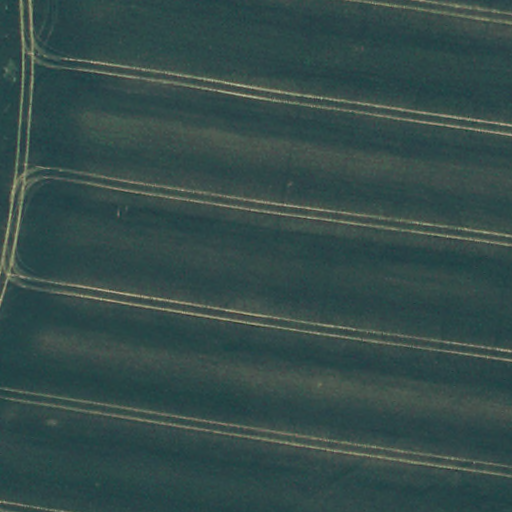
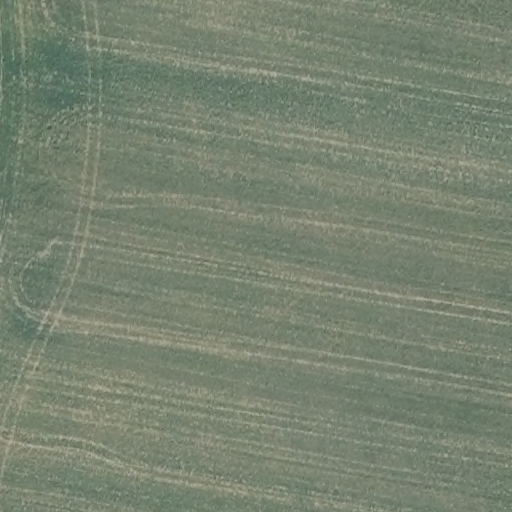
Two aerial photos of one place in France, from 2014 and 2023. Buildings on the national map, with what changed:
[]

